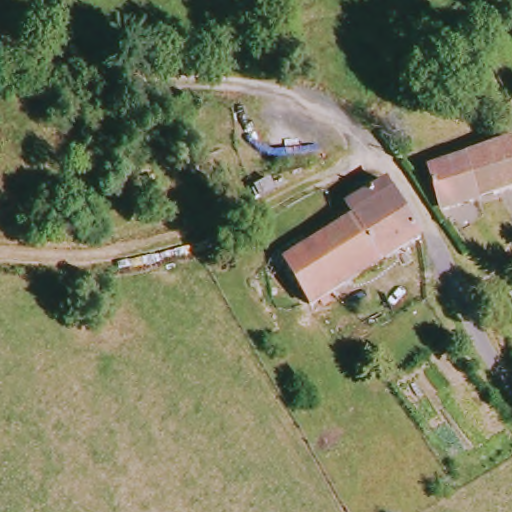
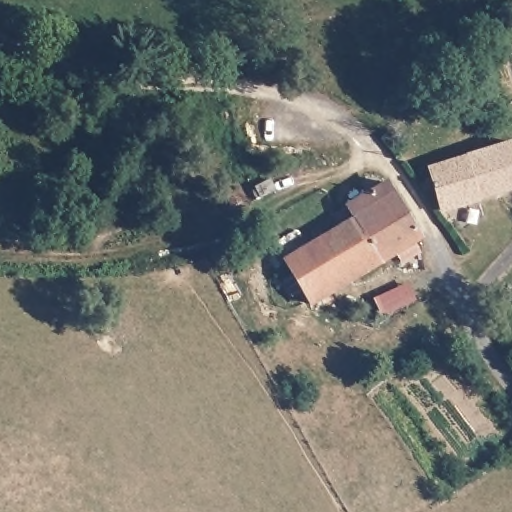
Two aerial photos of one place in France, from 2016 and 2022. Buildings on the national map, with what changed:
unchanged [(443,210),(431,171),(512,145),(512,190),(443,210)]
unchanged [(321,304),(294,261),(361,221),(353,207),(393,182),(428,242),(321,304)]

